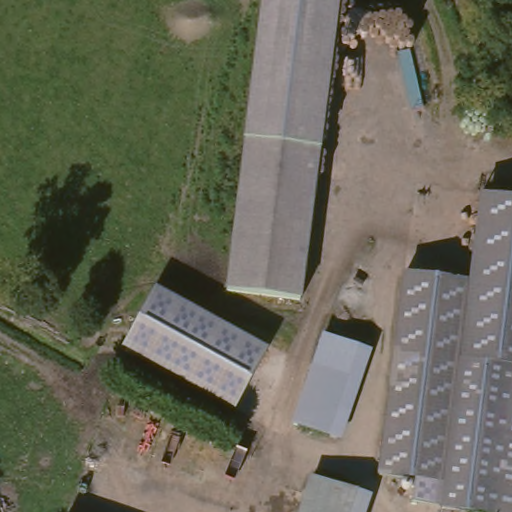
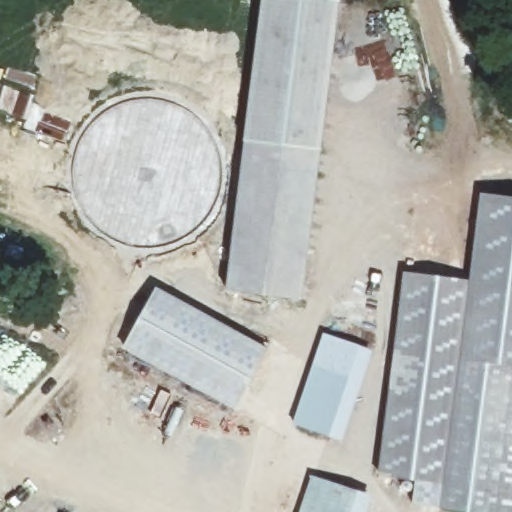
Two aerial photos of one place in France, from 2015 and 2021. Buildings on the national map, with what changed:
unchanged [(223,292),(259,0),(341,0),(300,303),(223,292)]
unchanged [(445,484),(380,475),(403,275),(470,283),(480,195),(512,199),(512,512),(486,512),(444,507),(445,484)]
unchanged [(155,292),(266,351),(236,410),(124,350),(155,292)]
unchanged [(379,349),(351,445),(290,424),(324,329),(379,349)]
unchanged [(368,498),(364,512),(302,512),(311,484),(368,498)]

